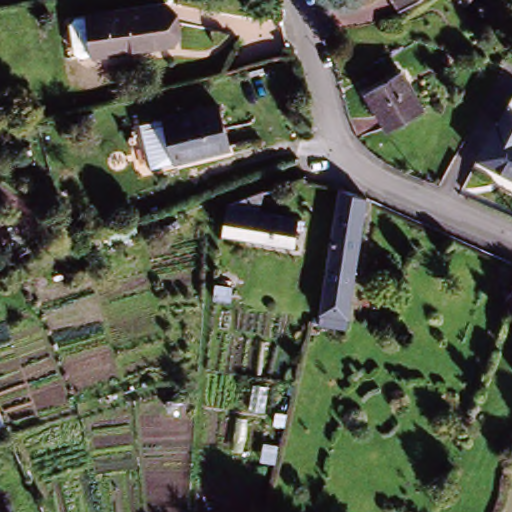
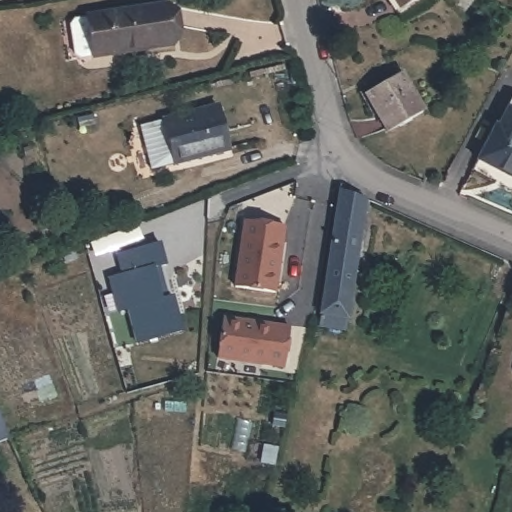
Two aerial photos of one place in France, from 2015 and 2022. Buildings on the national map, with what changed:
unchanged [(405,5),(401,8),(395,0),(413,0),(405,5)]
unchanged [(93,61),(85,20),(162,8),(166,31),(169,49),(93,61)]
unchanged [(365,99),(401,77),(422,115),(385,136),(365,99)]
unchanged [(153,125),(152,119),(175,113),(228,100),(239,146),(186,159),(162,164),(153,125)]
unchanged [(512,101),(512,137),(498,131),(512,101)]
unchanged [(497,130),(498,131),(512,137),(512,180),(480,165),(497,130)]
unchanged [(317,323),(340,189),(366,198),(345,327),(317,323)]
demolished [(228,245),(235,213),(267,202),(262,222),(302,229),(295,257),(228,245)]
new [(285,226),(275,293),(236,287),(246,220),(285,226)]
new [(130,225),(135,240),(95,255),(89,241),(130,225)]
new [(120,273),(115,253),(157,242),(163,263),(151,267),(160,298),(170,295),(180,330),(135,342),(126,308),(117,311),(107,277),(120,273)]
new [(222,316),(289,324),(285,364),(217,356),(222,316)]
unchanged [(6,431),(7,435),(0,438),(0,415),(6,431)]

